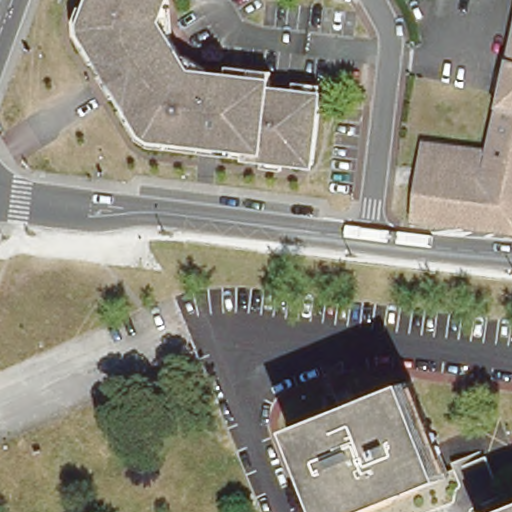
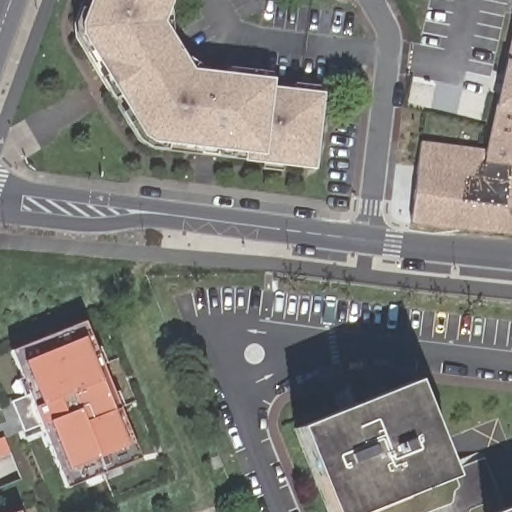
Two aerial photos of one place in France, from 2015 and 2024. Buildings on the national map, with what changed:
unchanged [(274,153),(164,140),(149,128),(80,27),(78,10),(81,0),(161,0),(160,3),(204,71),(218,73),(219,68),(240,70),(241,64),(282,69),(280,76),(280,81),(305,85),(306,79),(330,82),(329,88),(332,88),(323,159),(295,156),(294,163),(273,160),(274,153)]
unchanged [(410,218),(419,141),(483,149),(486,134),(491,134),(512,39),(512,229),(420,220),(410,218)]
new [(67,487),(10,351),(85,321),(140,456),(67,487)]
unchanged [(409,385),(443,470),(335,512),(302,427),(409,385)]
unchanged [(512,506),(512,512),(497,512),(512,506)]
new [(20,510),(21,512),(15,512),(20,510)]

